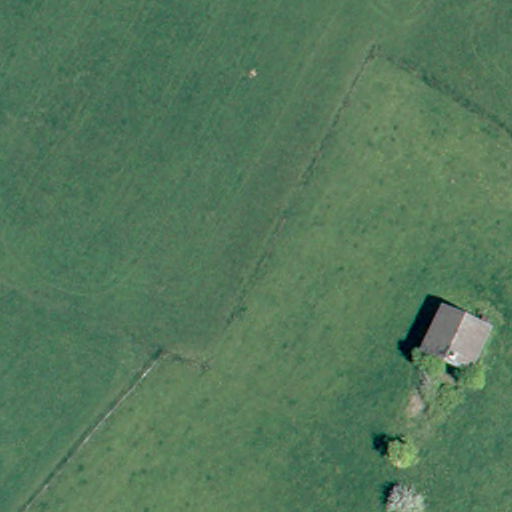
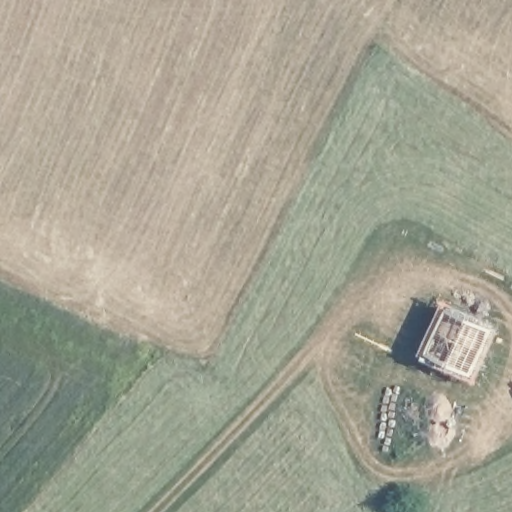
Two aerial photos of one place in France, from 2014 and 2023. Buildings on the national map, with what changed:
unchanged [(465,369),(439,355),(460,309),(486,321),(465,369)]

